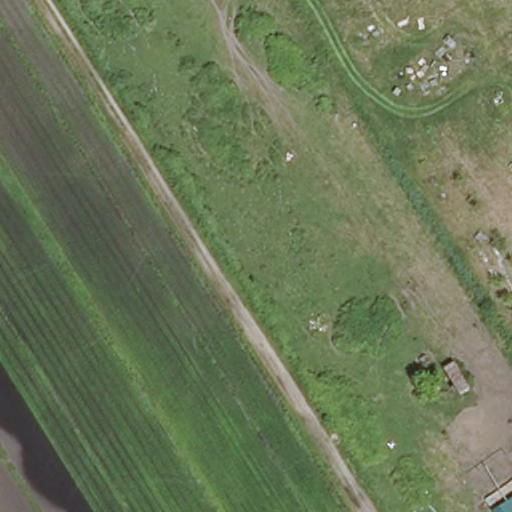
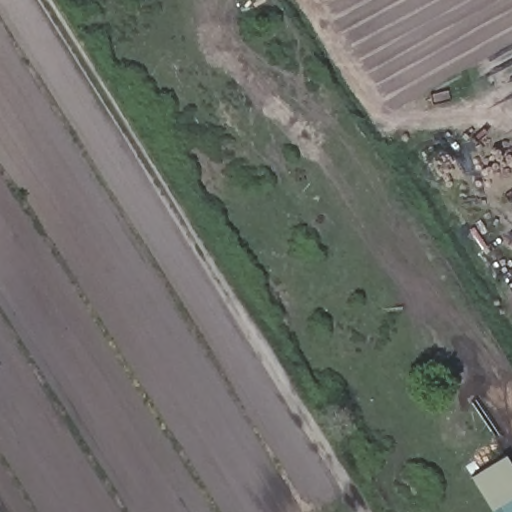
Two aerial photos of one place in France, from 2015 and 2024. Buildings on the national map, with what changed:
new [(471,478),(507,454),(512,461),(512,499),(492,512),(471,478)]
unchanged [(512,499),(512,512),(492,512),(512,499)]

